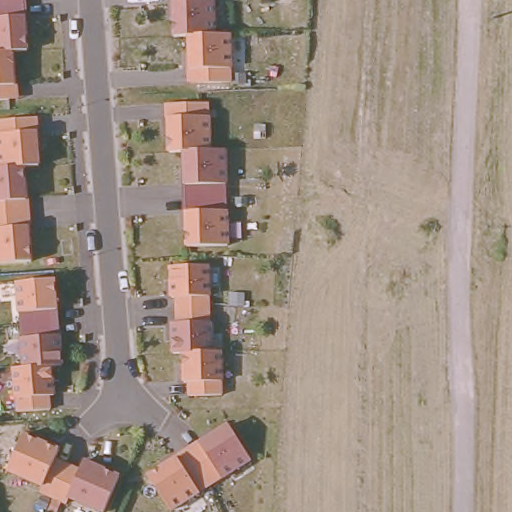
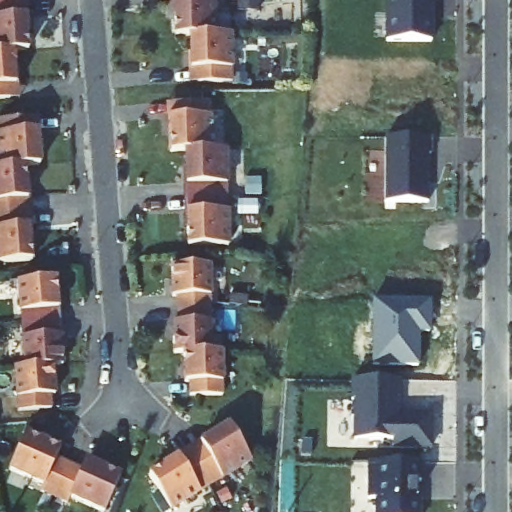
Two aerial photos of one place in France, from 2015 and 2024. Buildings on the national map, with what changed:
unchanged [(0,98),(0,0),(22,0),(22,3),(23,15),(26,49),(11,50),(14,83),(15,96),(8,97),(0,98)]
unchanged [(190,35),(175,35),(173,0),(212,0),(212,33),(227,32),(229,80),(198,81),(191,81),(190,68),(190,35)]
new [(432,0),(432,10),(430,10),(430,19),(432,18),(432,42),(387,43),(387,0),(432,0)]
unchanged [(183,150),(168,151),(167,116),(167,103),(174,102),(207,101),(208,150),(223,149),(225,243),(187,245),(185,210),(185,184),(183,150)]
unchanged [(30,259),(0,262),(0,119),(26,116),(33,116),(34,130),(37,164),(22,165),(25,199),(27,226),(30,259)]
new [(435,141),(435,157),(430,157),(429,206),(384,206),(385,140),(435,141)]
unchanged [(182,381),(182,352),(172,352),(172,338),(172,321),(170,296),(170,265),(207,264),(209,337),(210,350),(219,350),(220,393),(188,394),(183,394),(182,381)]
unchanged [(49,407),(16,410),(13,367),(22,366),(21,343),(17,281),(53,278),(55,308),(57,334),(58,342),(60,363),(50,364),(52,393),(54,407),(49,407)]
new [(372,300),(430,301),(430,333),(420,333),(420,366),(371,365),(372,300)]
new [(434,450),(394,450),(394,442),(356,442),(356,403),(353,403),(353,383),(401,383),(401,401),(399,401),(399,417),(433,417),(434,450)]
unchanged [(169,508),(147,474),(177,456),(194,445),(198,442),(228,423),(240,442),(250,457),(169,508)]
unchanged [(58,448),(68,453),(83,459),(119,475),(103,511),(69,496),(65,502),(39,490),(42,484),(7,469),(12,456),(22,433),(58,448)]
new [(422,464),(422,485),(416,485),(415,499),(420,501),(420,512),(376,512),(375,502),(369,501),(369,465),(422,464)]

